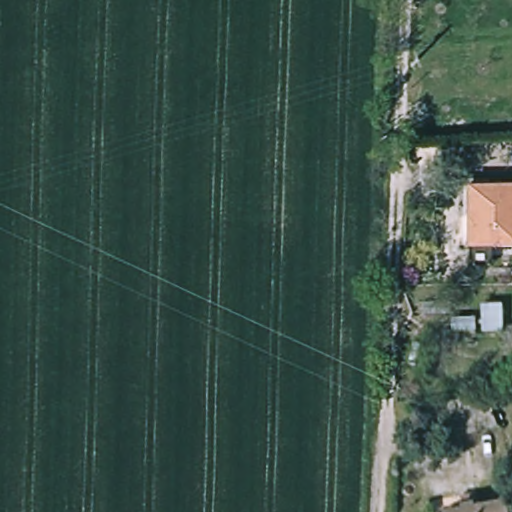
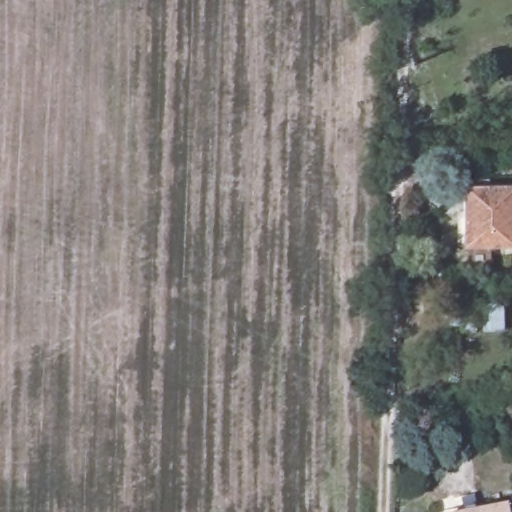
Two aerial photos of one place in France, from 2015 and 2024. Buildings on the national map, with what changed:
unchanged [(459,246),(460,187),(510,187),(509,246),(459,246)]
unchanged [(494,421),(498,443),(481,447),(479,442),(457,447),(453,428),(494,421)]
unchanged [(448,511),(508,501),(510,512),(448,512),(448,511)]

